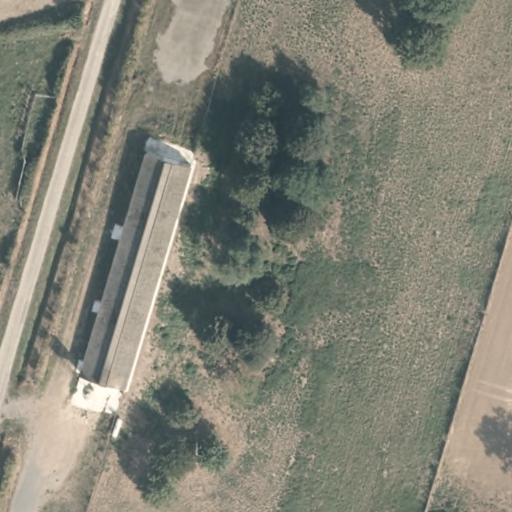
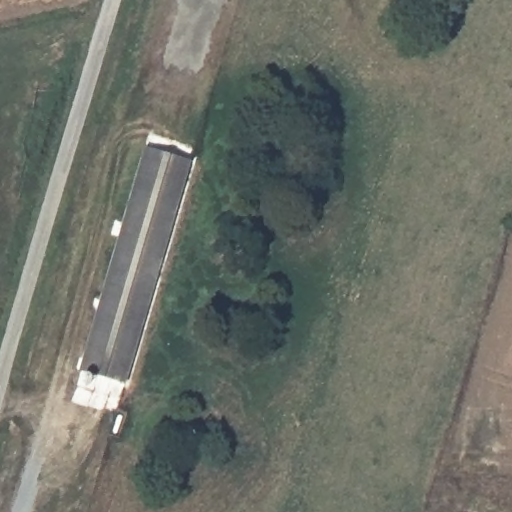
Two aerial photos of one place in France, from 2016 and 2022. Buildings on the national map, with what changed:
unchanged [(79,371),(150,148),(194,164),(125,385),(79,371)]

